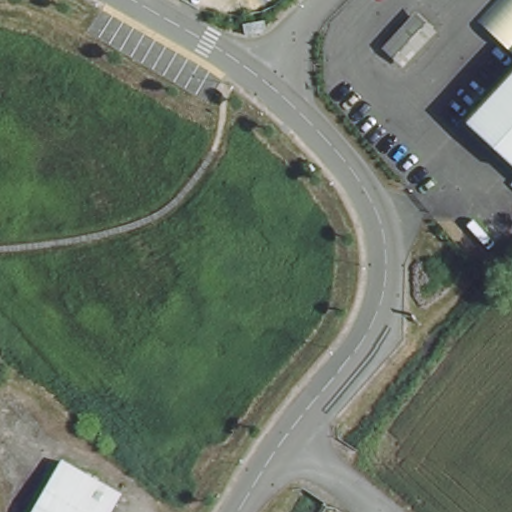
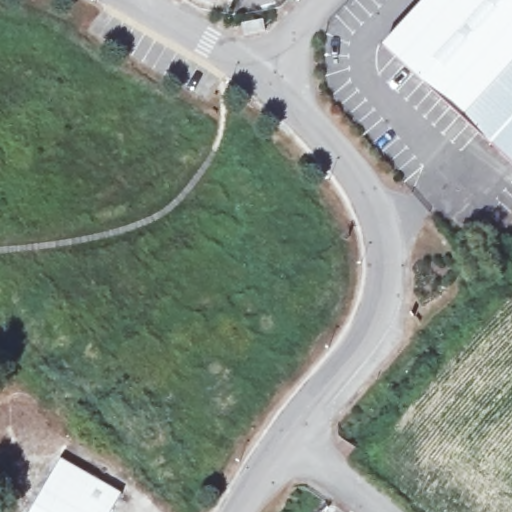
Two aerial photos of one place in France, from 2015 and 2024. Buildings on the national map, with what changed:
new [(512,69),(466,116),(387,45),(428,0),(512,0),(512,69)]
demolished [(436,32),(403,67),(381,48),(416,10),(436,32)]
unchanged [(512,69),(512,161),(466,116),(512,69)]
unchanged [(111,512),(33,512),(62,456),(123,490),(111,512)]

